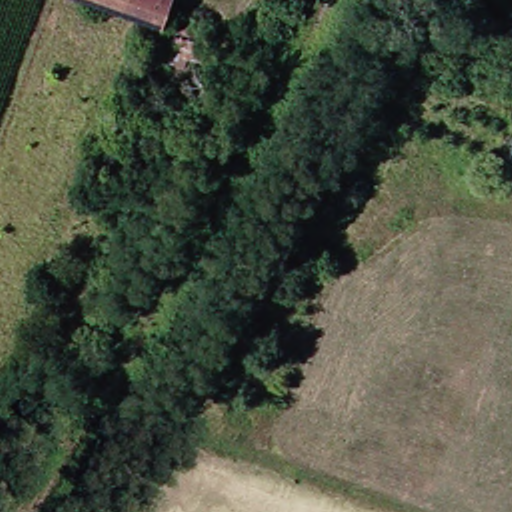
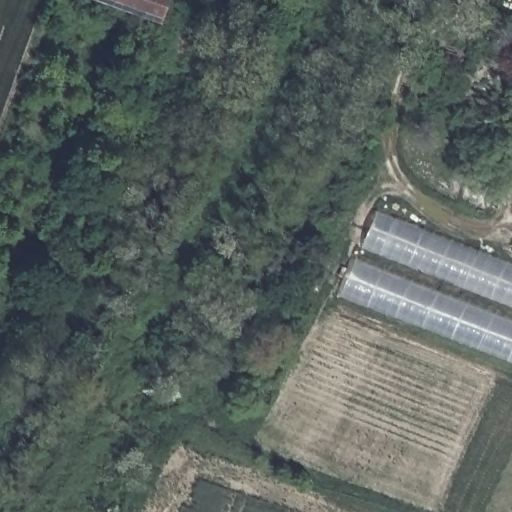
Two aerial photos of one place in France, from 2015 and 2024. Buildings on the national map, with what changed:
unchanged [(110,0),(170,0),(162,20),(110,0)]
new [(512,264),(512,308),(363,248),(380,211),(512,264)]
new [(356,260),(512,321),(512,365),(340,297),(356,260)]

